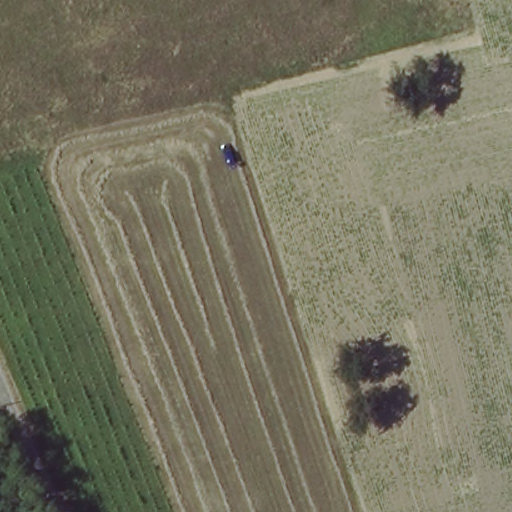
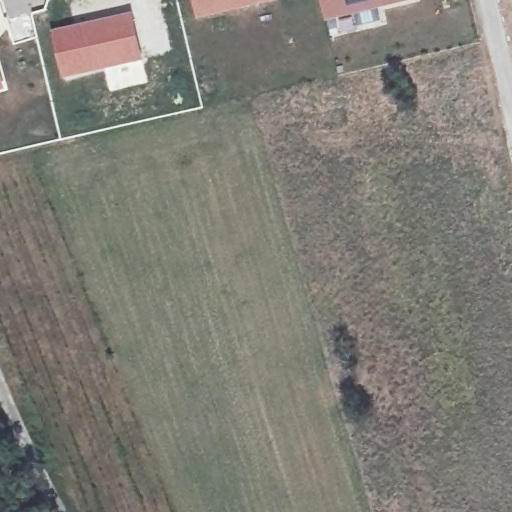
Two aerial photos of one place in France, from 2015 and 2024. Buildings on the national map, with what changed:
new [(276,0),(196,20),(192,0),(276,0)]
new [(417,1),(326,23),(320,0),(416,0),(417,1)]
new [(131,14),(143,61),(63,80),(52,31),(131,14)]
new [(0,91),(0,68),(5,90),(0,91)]

